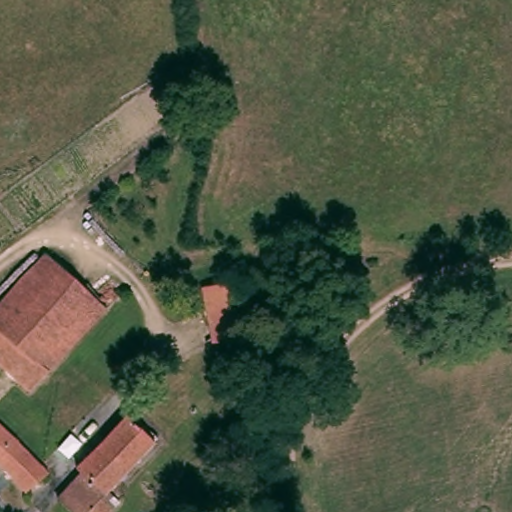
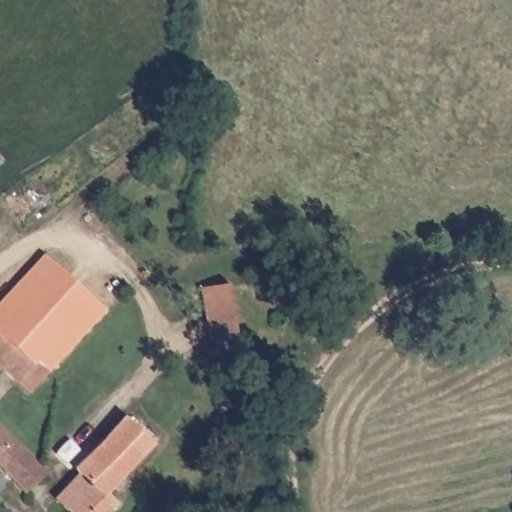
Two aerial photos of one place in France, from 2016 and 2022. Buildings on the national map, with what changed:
unchanged [(30,393),(0,364),(0,304),(47,256),(107,315),(30,393)]
unchanged [(222,282),(224,282),(231,326),(234,344),(215,345),(200,280),(222,282)]
unchanged [(160,445),(126,476),(100,501),(109,512),(67,512),(57,500),(82,475),(77,470),(132,416),(142,427),(160,445)]
unchanged [(30,493),(0,460),(0,427),(46,480),(30,493)]

